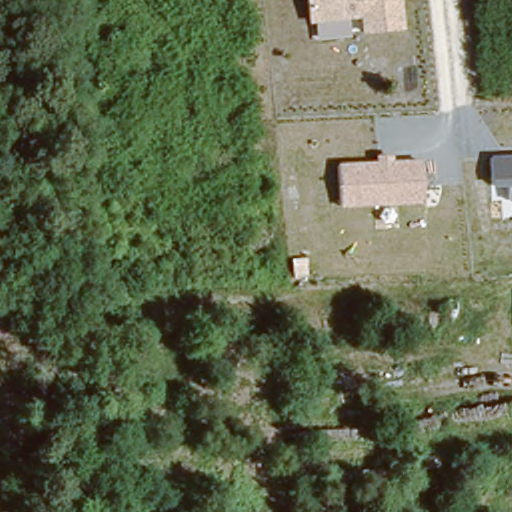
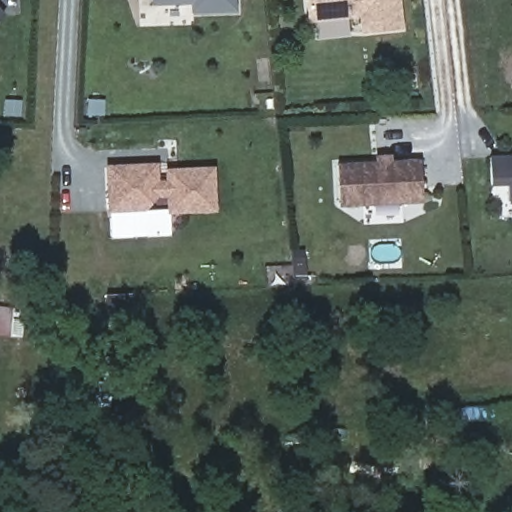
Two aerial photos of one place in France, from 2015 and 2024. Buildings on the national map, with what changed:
new [(237,12),(191,15),(191,6),(154,6),(154,0),(237,0),(237,12)]
unchanged [(359,34),(357,19),(308,24),(306,0),(401,0),(403,30),(359,34)]
new [(3,15),(0,18),(0,11),(3,15)]
unchanged [(512,200),(509,201),(508,187),(489,188),(487,156),(512,155),(512,200)]
unchanged [(423,204),(338,208),(337,164),(375,162),(375,157),(392,156),(392,161),(420,159),(423,204)]
new [(106,165),(160,164),(160,181),(166,181),(165,170),(217,167),(219,213),(168,215),(167,198),(158,199),(147,212),(108,214),(106,165)]
new [(15,308),(12,338),(0,336),(0,306),(15,308)]

